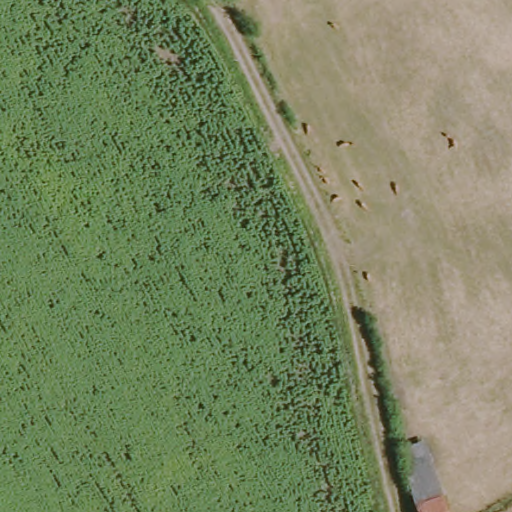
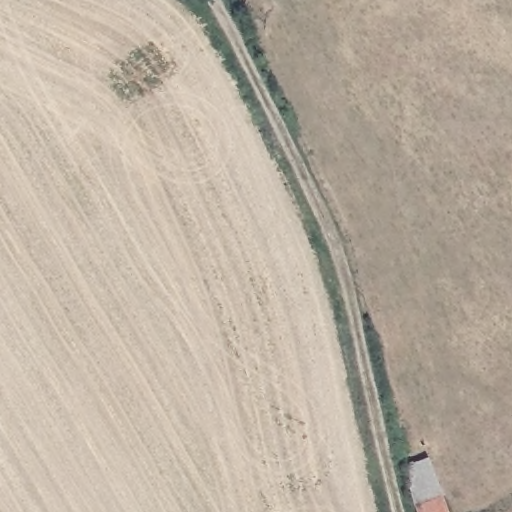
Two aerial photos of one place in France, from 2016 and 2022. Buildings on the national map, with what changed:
unchanged [(452,512),(422,512),(422,509),(408,450),(434,444),(448,495),(452,512)]

